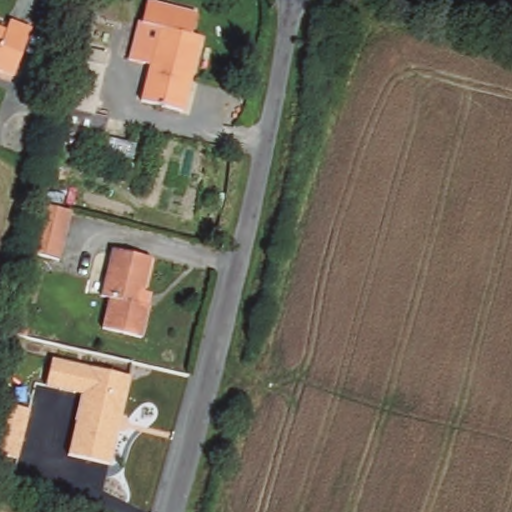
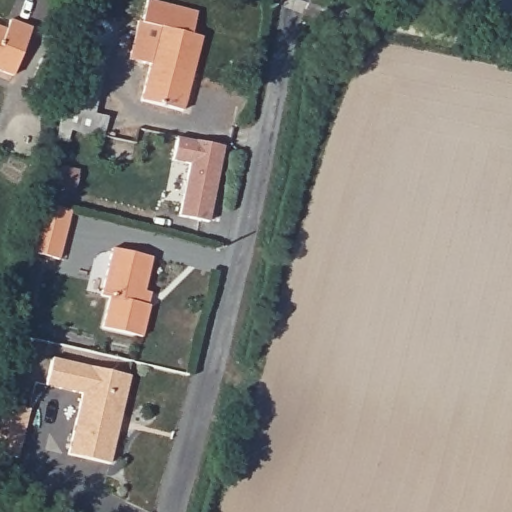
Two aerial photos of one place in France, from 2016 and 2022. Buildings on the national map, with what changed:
unchanged [(148,26),(154,2),(200,15),(196,36),(203,38),(185,112),(145,101),(155,66),(135,60),(144,25),(148,26)]
unchanged [(18,76),(0,70),(0,27),(10,31),(13,21),(35,29),(18,76)]
unchanged [(110,52),(100,99),(110,101),(105,122),(78,116),(74,130),(59,125),(80,44),(110,52)]
unchanged [(50,69),(43,66),(46,57),(53,60),(50,69)]
new [(181,141),(227,152),(209,225),(180,219),(193,167),(176,162),(181,141)]
new [(42,163),(70,170),(66,189),(38,182),(42,163)]
unchanged [(73,210),(62,258),(33,251),(44,202),(73,210)]
unchanged [(147,307),(140,337),(100,327),(107,297),(100,295),(110,247),(151,257),(143,290),(151,292),(147,307)]
unchanged [(111,460),(70,449),(86,389),(50,380),(57,352),(135,371),(111,460)]
unchanged [(0,457),(0,406),(26,410),(17,460),(0,457)]

